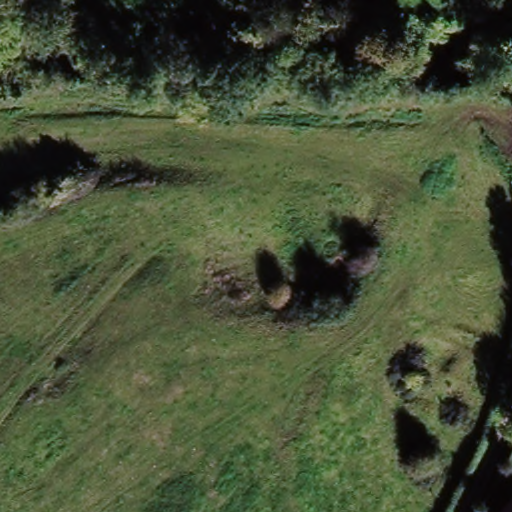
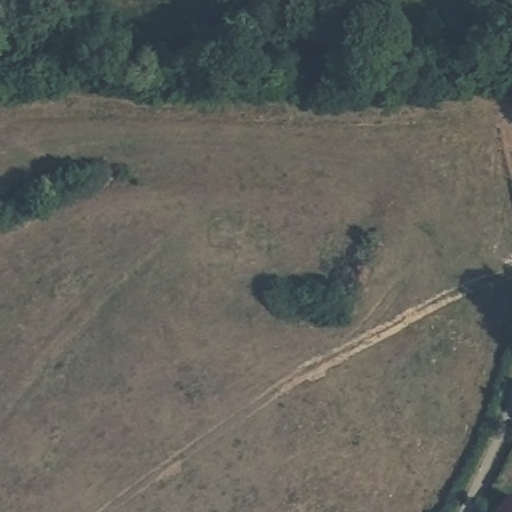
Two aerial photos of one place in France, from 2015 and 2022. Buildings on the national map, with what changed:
unchanged [(495,512),(512,493),(512,512),(495,512)]

